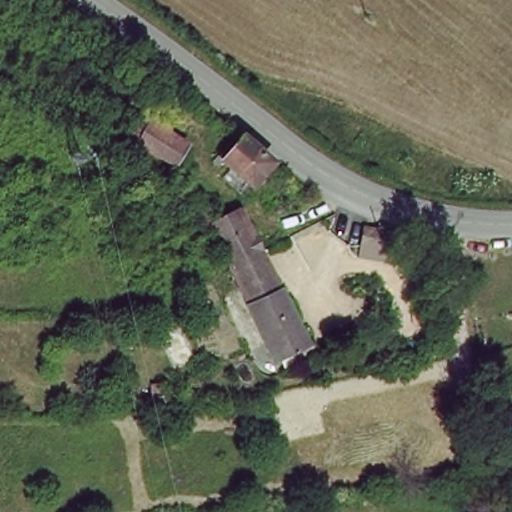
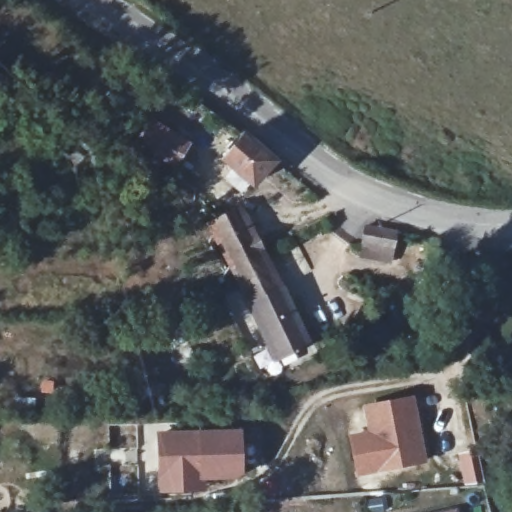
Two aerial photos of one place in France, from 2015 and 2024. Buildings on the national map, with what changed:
unchanged [(128,142),(127,141),(121,138),(132,117),(185,142),(174,164),(128,142)]
unchanged [(273,160),(253,185),(222,159),(242,135),(273,160)]
unchanged [(215,230),(246,214),(265,252),(237,265),(233,267),(215,230)]
unchanged [(395,230),(393,247),(364,240),(366,224),(395,230)]
unchanged [(306,331),(273,347),(233,267),(237,265),(265,252),(306,331)]
new [(362,406),(414,395),(426,462),(375,472),(362,406)]
new [(158,436),(239,432),(239,476),(160,480),(158,436)]
new [(456,512),(442,512),(455,509),(456,512)]

